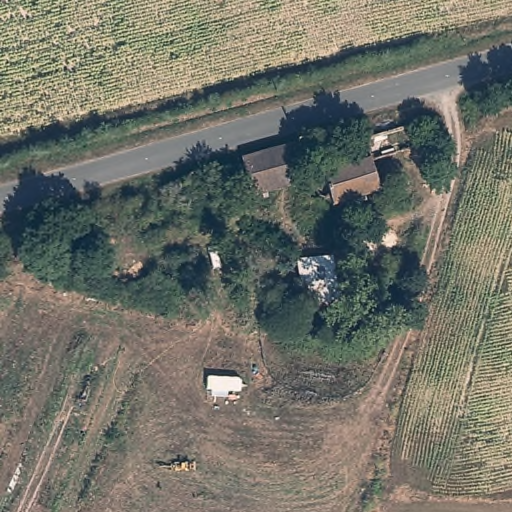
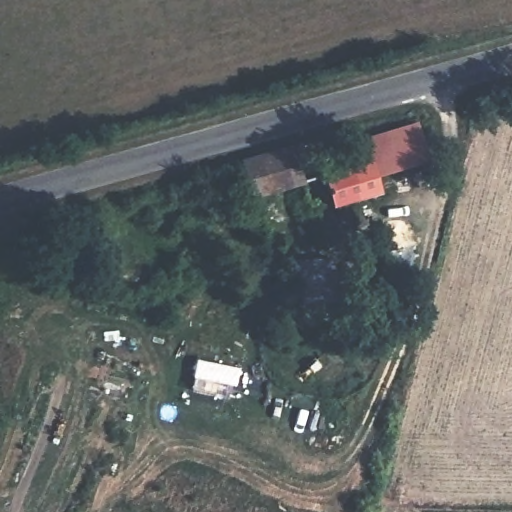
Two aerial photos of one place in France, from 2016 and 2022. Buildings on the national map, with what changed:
unchanged [(425,175),(326,205),(323,196),(312,200),(305,184),(252,201),(240,164),(293,147),(305,179),(365,160),(358,139),(412,122),(425,171),(425,175)]
unchanged [(347,315),(349,320),(335,325),(324,290),(345,283),(355,312),(347,315)]

